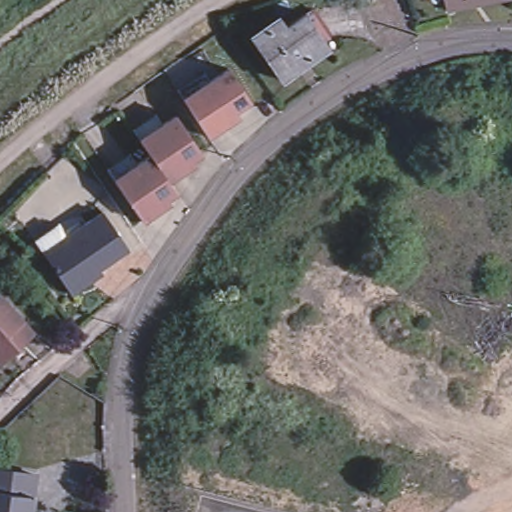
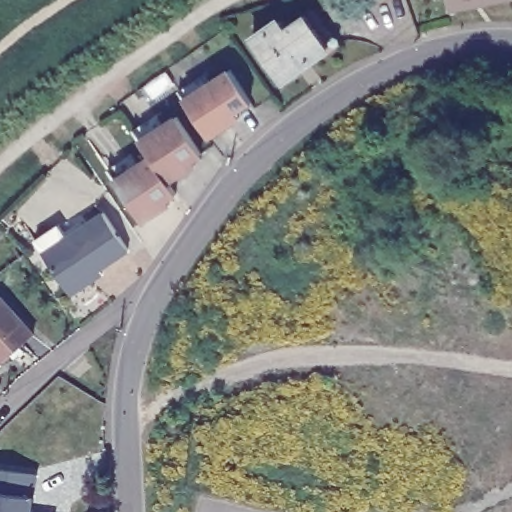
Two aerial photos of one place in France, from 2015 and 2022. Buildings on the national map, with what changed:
unchanged [(447,0),(490,0),(473,4),(449,8),(447,0)]
unchanged [(282,22),(287,29),(306,17),(327,50),(280,81),(253,41),(282,22)]
unchanged [(235,123),(215,136),(190,99),(184,90),(211,73),(216,81),(233,70),(235,69),(256,100),(253,102),(241,110),(245,116),(235,123)]
unchanged [(186,168),(168,179),(151,154),(140,138),(134,128),(157,113),(164,123),(177,114),(201,151),(192,158),(195,162),(186,168)]
unchanged [(160,207),(141,219),(115,177),(108,166),(131,151),(138,161),(151,154),(168,179),(176,192),(166,198),(169,202),(160,207)]
unchanged [(87,278),(67,290),(40,248),(38,244),(32,234),(57,219),(61,226),(65,232),(102,209),(126,247),(96,265),(99,269),(87,278)]
unchanged [(33,330),(0,361),(0,292),(33,330)]
unchanged [(32,474),(27,512),(0,512),(0,469),(32,474)]

